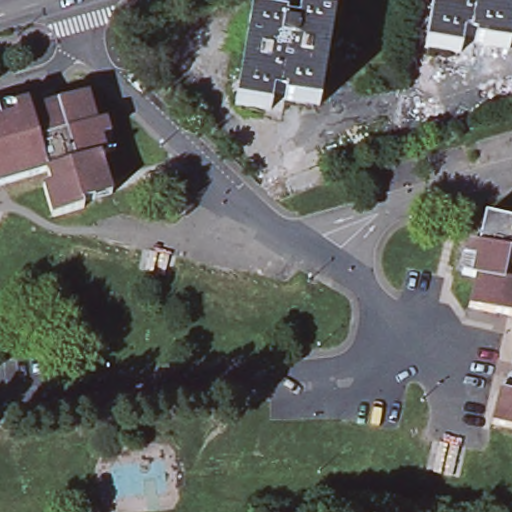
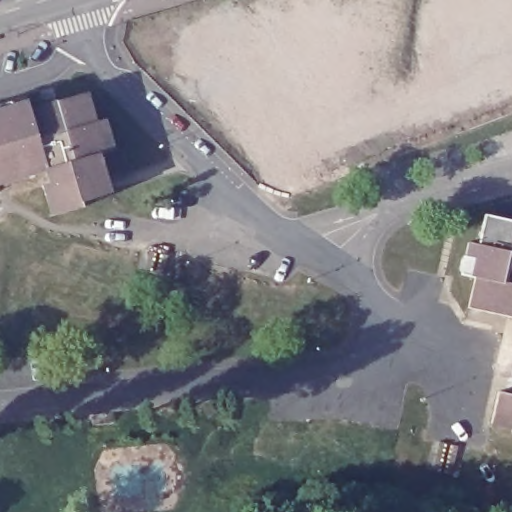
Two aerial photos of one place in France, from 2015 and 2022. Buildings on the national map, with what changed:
demolished [(472,42),(473,36),(461,34),(458,52),(424,45),(432,0),(512,0),(512,15),(507,47),(472,42)]
demolished [(332,11),(326,42),(328,43),(317,105),(281,99),(282,94),(272,92),(269,109),(234,102),(250,9),(285,16),(285,11),(296,13),(298,5),(332,11)]
unchanged [(32,105),(88,88),(97,117),(106,115),(116,145),(100,150),(112,188),(83,197),(85,202),(52,212),(43,180),(50,178),(45,165),(0,179),(0,105),(29,96),(32,105)]
unchanged [(460,277),(468,244),(477,246),(484,215),(512,221),(512,319),(467,309),(474,282),(475,280),(460,277)]
unchanged [(492,423),(497,394),(507,396),(512,374),(512,427),(492,423)]

